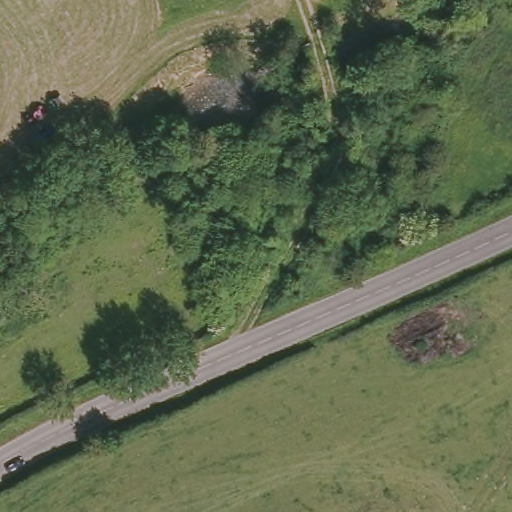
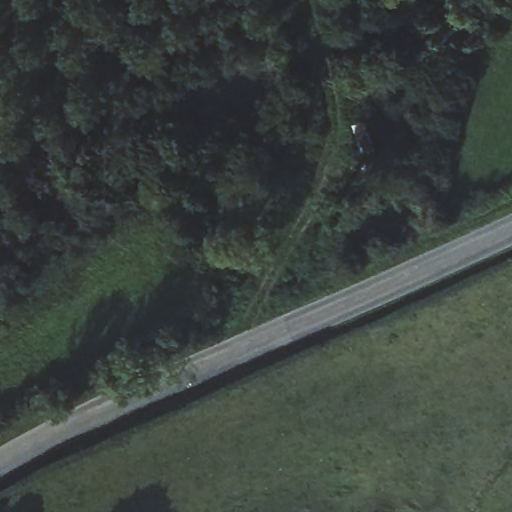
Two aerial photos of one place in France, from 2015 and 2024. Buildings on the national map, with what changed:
[]

